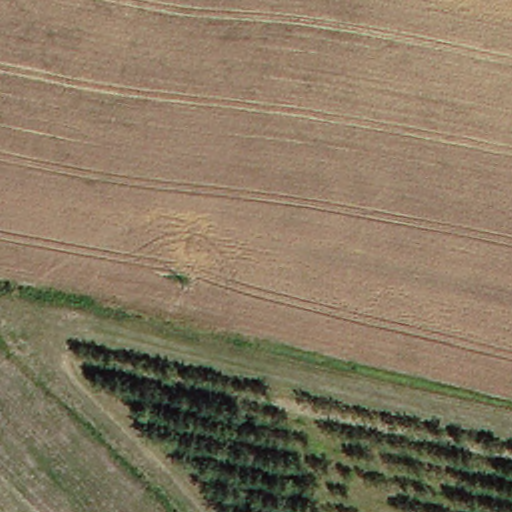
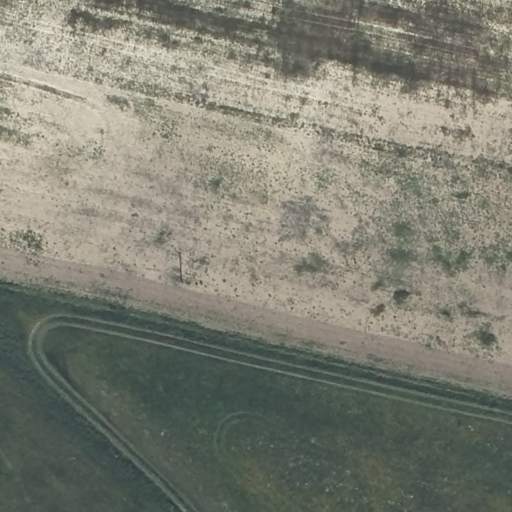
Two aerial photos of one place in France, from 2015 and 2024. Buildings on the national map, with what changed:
[]

